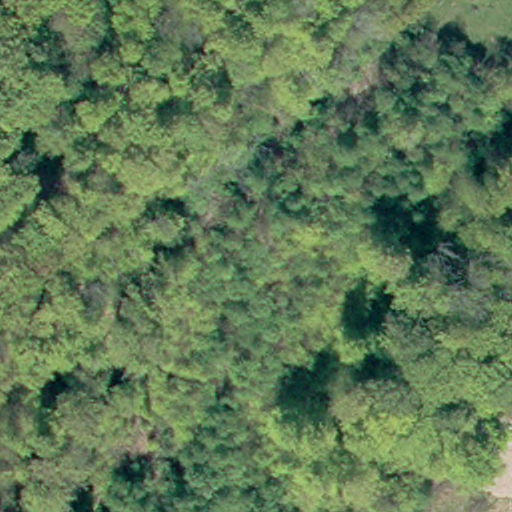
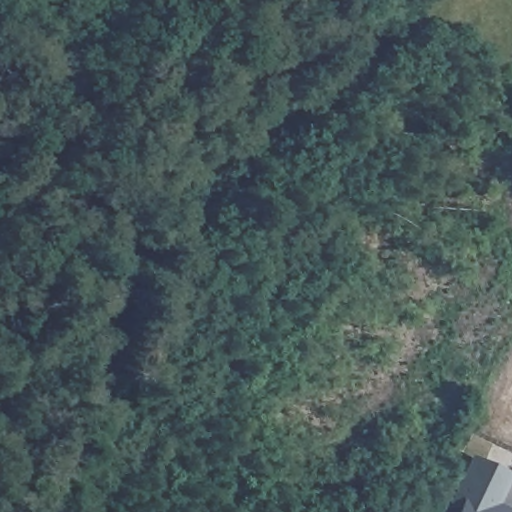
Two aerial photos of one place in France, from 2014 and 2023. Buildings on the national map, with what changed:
new [(497,512),(455,512),(461,500),(454,498),(472,457),(512,474),(512,479),(497,512)]

